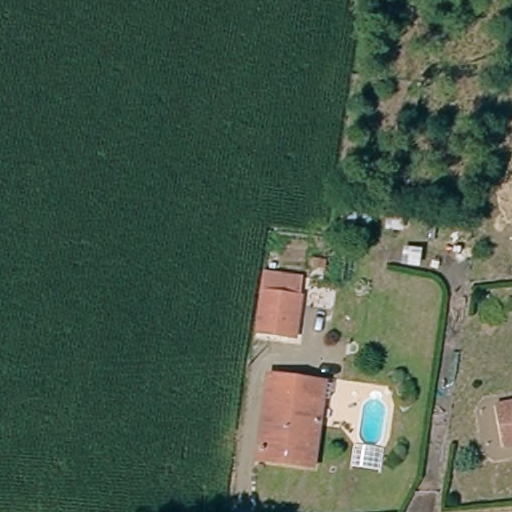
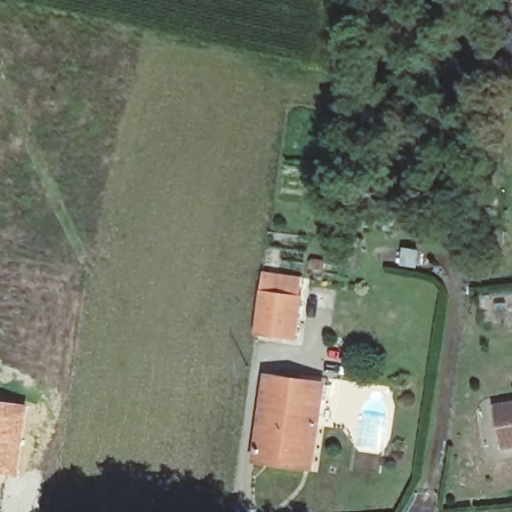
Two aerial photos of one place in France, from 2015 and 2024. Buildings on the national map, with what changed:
unchanged [(283,343),(255,338),(263,285),(266,265),(308,271),(305,292),(300,327),(296,346),(283,343)]
unchanged [(300,470),(253,461),(267,377),(295,381),(331,388),(330,402),(322,401),(317,431),(310,472),(300,470)]
new [(19,477),(0,475),(0,399),(30,404),(19,477)]
unchanged [(497,445),(492,401),(512,399),(512,444),(497,445)]

